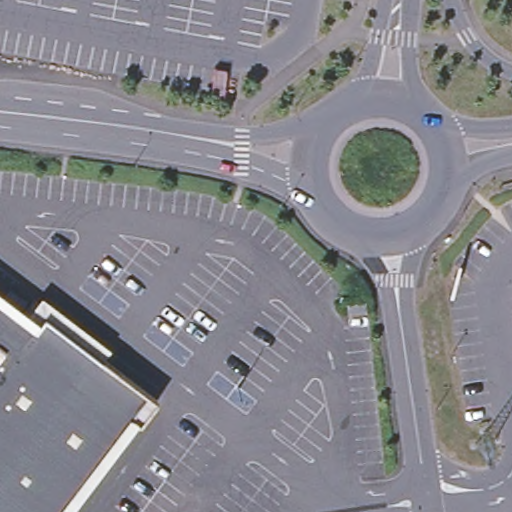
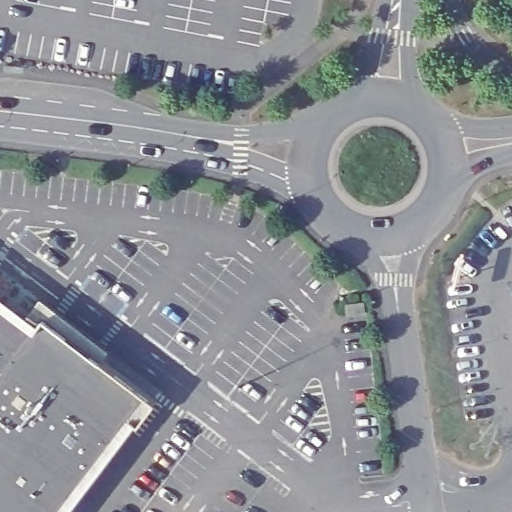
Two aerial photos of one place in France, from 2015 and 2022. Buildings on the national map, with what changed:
unchanged [(31,325),(39,313),(151,397),(134,420),(126,414),(54,512),(0,512),(0,301),(31,325)]
unchanged [(346,313),(346,305),(365,303),(366,314),(347,316),(346,313)]

